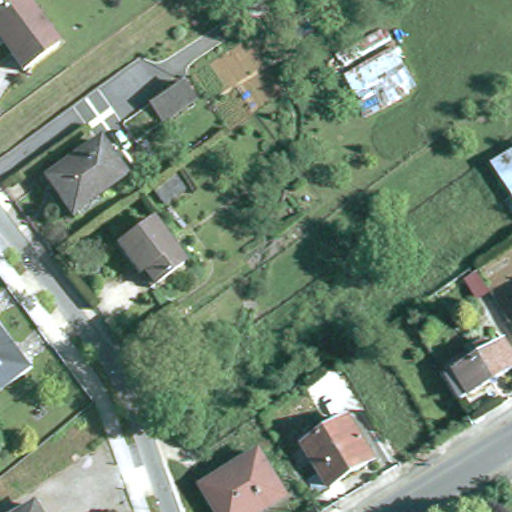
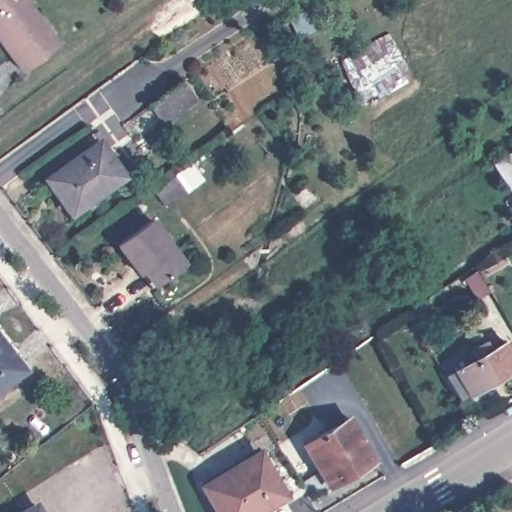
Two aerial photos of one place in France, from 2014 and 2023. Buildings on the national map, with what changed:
unchanged [(0,38),(0,0),(26,0),(46,26),(10,52),(0,38)]
unchanged [(46,26),(61,47),(26,72),(10,52),(46,26)]
unchanged [(202,99),(168,123),(156,105),(190,81),(202,99)]
unchanged [(76,213),(51,179),(103,141),(127,175),(76,213)]
unchanged [(512,152),(512,186),(497,162),(512,152)]
unchanged [(184,268),(155,289),(146,278),(142,280),(118,248),(152,224),(184,268)]
unchanged [(470,277),(483,269),(496,289),(483,297),(470,277)]
unchanged [(28,373),(0,395),(0,337),(28,373)]
unchanged [(485,362),(480,352),(497,344),(502,353),(512,348),(512,378),(479,398),(477,396),(467,401),(455,379),(465,373),(485,362)]
unchanged [(307,482),(324,473),(310,448),(354,423),(378,464),(335,491),(319,501),(307,482)]
unchanged [(272,512),(221,512),(209,490),(266,456),(291,500),(272,512)]
unchanged [(46,512),(32,512),(43,505),(46,512)]

